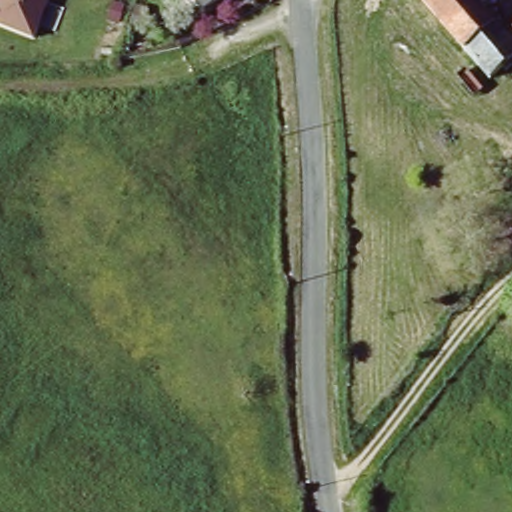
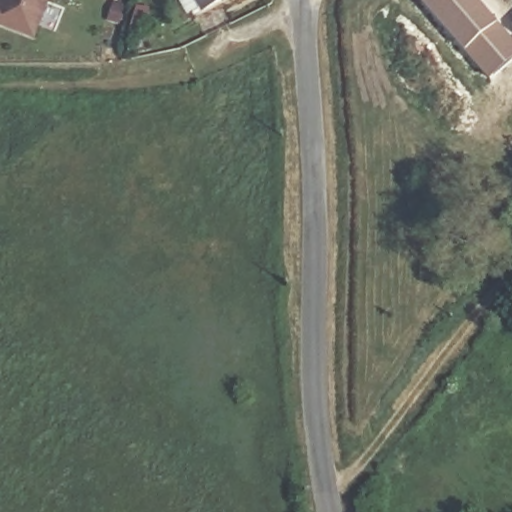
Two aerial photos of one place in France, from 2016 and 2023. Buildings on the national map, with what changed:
unchanged [(35,40),(0,27),(0,0),(50,0),(35,40)]
unchanged [(201,14),(193,0),(227,0),(201,14)]
unchanged [(425,0),(481,0),(512,35),(512,57),(504,64),(502,61),(489,72),(425,0)]
unchanged [(509,18),(512,16),(512,21),(509,18)]
unchanged [(131,26),(144,30),(138,51),(124,47),(131,26)]

